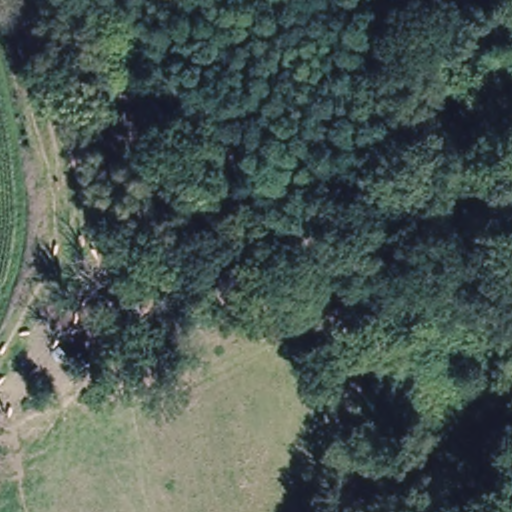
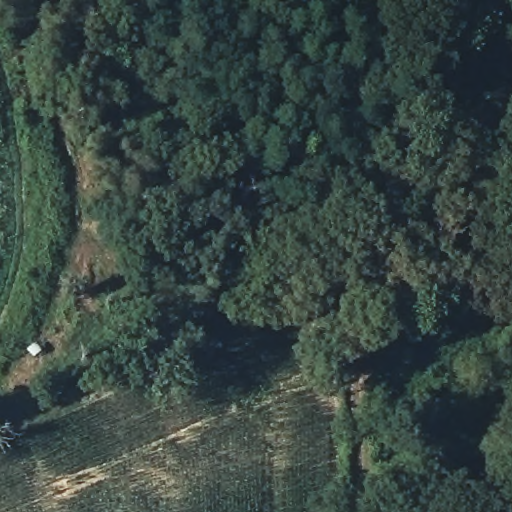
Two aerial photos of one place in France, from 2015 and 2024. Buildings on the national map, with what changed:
unchanged [(73,196),(75,235),(46,237),(45,195),(73,196)]

